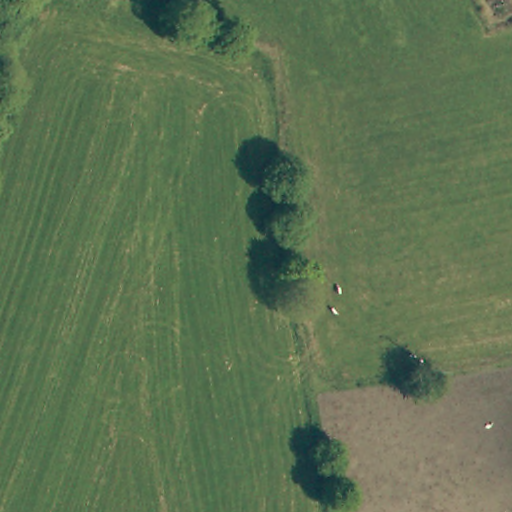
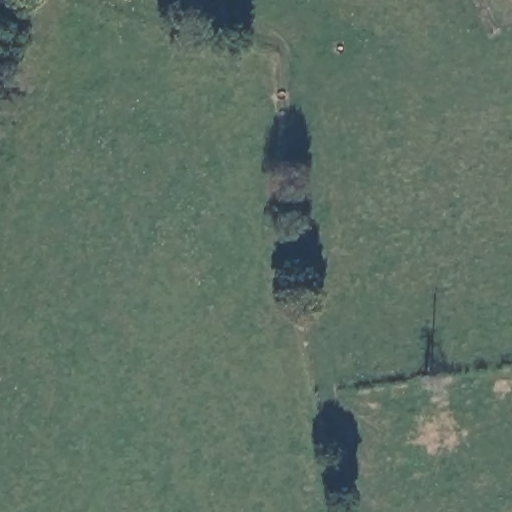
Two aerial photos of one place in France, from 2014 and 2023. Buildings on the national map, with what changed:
[]

